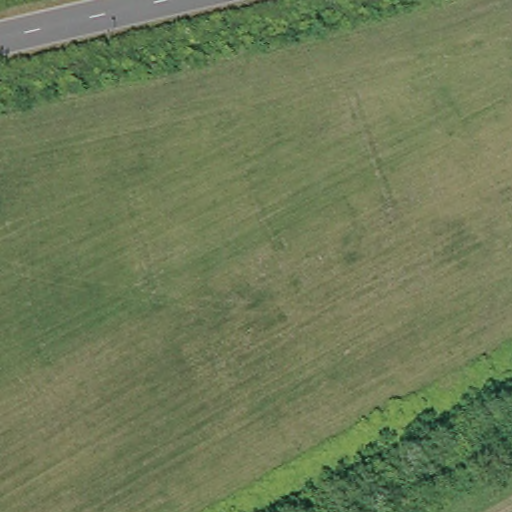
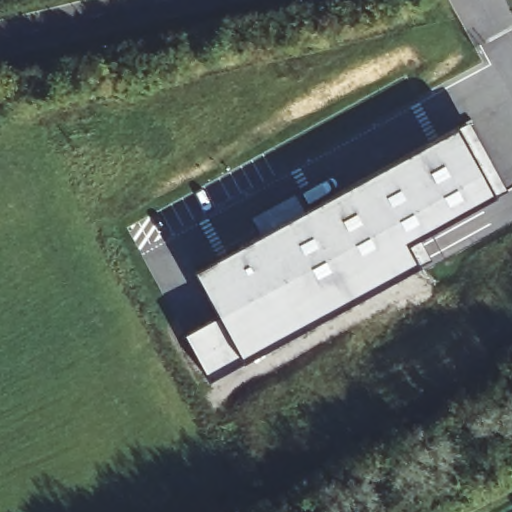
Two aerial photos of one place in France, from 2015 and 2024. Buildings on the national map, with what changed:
new [(503,190),(412,237),(424,256),(212,373),(191,329),(228,308),(201,262),(465,120),(503,190)]

